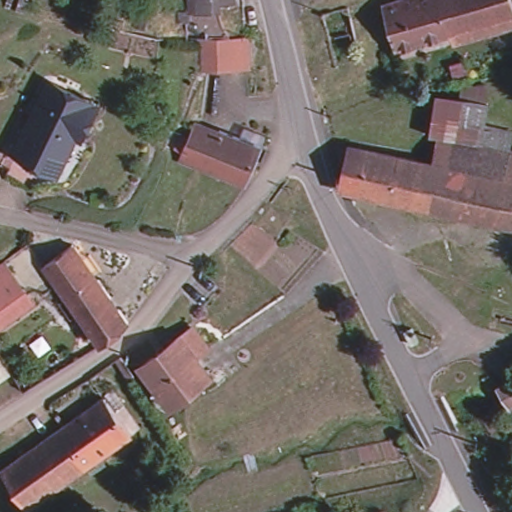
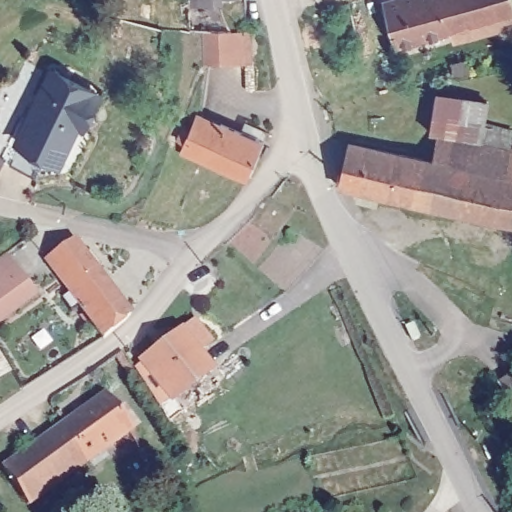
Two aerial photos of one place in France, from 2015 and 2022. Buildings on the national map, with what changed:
unchanged [(193,0),(209,0),(210,3),(193,5),(193,0)]
unchanged [(442,27),(392,42),(378,0),(434,0),(442,27)]
unchanged [(512,4),(512,7),(507,9),(442,27),(434,0),(511,0),(512,4)]
unchanged [(215,32),(250,31),(252,61),(223,62),(222,58),(205,58),(205,32),(215,32)]
unchanged [(14,161),(25,139),(23,139),(57,67),(105,90),(90,122),(82,120),(73,140),(64,158),(51,152),(40,174),(14,161)]
unchanged [(411,201),(421,159),(432,161),(437,137),(430,136),(439,94),(489,104),(486,120),(512,126),(512,143),(511,147),(512,147),(512,224),(496,220),(411,201)]
unchanged [(245,124),(267,132),(264,142),(262,145),(255,160),(247,179),(205,162),(209,155),(183,145),(195,115),(220,125),(242,134),(245,124)]
unchanged [(421,159),(411,201),(359,190),(339,186),(349,144),(421,159)]
unchanged [(285,207),(293,214),(285,225),(274,240),(248,224),(272,199),(285,207)]
unchanged [(74,238),(85,254),(91,249),(102,265),(96,270),(130,317),(124,323),(102,340),(46,260),(74,238)]
unchanged [(31,289),(0,312),(0,268),(10,261),(31,289)]
unchanged [(172,402),(142,362),(180,333),(194,323),(210,343),(195,354),(210,372),(172,402)]
unchanged [(12,370),(0,378),(0,352),(12,370)]
unchanged [(222,389),(185,418),(172,402),(210,372),(222,389)]
unchanged [(106,395),(133,430),(130,433),(133,438),(127,443),(123,438),(85,465),(59,428),(106,395)]
unchanged [(85,465),(27,506),(2,468),(59,428),(85,465)]

